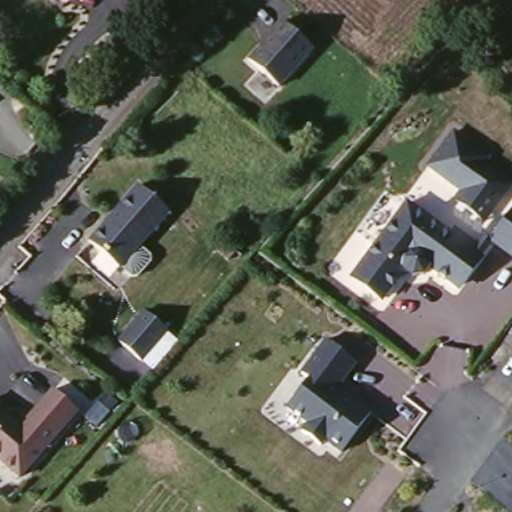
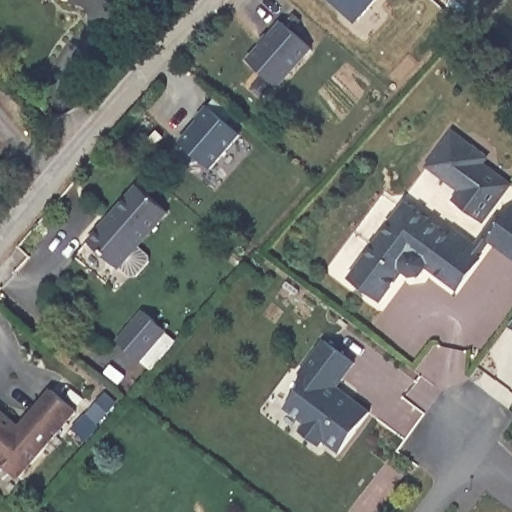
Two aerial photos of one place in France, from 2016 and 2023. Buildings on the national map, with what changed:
unchanged [(291,13),(325,40),(287,81),(256,54),(291,13)]
new [(210,110),(242,135),(214,165),(185,138),(210,110)]
unchanged [(489,154),(486,160),(512,176),(512,181),(486,220),(453,200),(462,187),(430,166),(458,128),(489,154)]
unchanged [(141,177),(173,204),(126,261),(95,234),(141,177)]
unchanged [(489,254),(460,289),(428,267),(424,273),(416,278),(409,278),(402,272),(382,301),(351,279),(408,198),(489,254)]
unchanged [(492,238),(512,207),(512,253),(492,238)]
unchanged [(138,357),(119,339),(147,309),(165,328),(138,357)]
unchanged [(354,363),(339,389),(373,413),(337,459),(298,432),(306,420),(286,403),(328,339),(354,363)]
unchanged [(28,471),(0,446),(0,392),(29,413),(56,383),(84,404),(28,471)]

